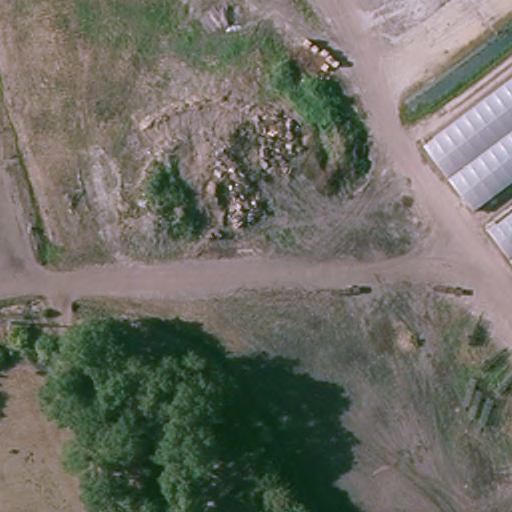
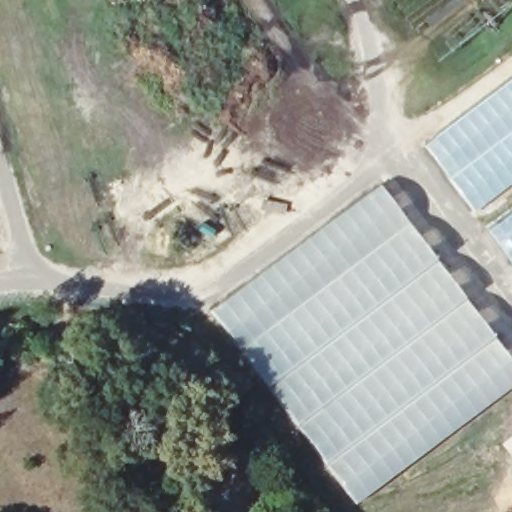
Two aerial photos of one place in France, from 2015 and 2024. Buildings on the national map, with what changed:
unchanged [(473,212),(432,150),(512,87),(512,182),(473,212)]
new [(512,360),(512,384),(354,503),(213,310),(379,184),(512,360)]
unchanged [(494,233),(512,218),(512,257),(494,233)]

